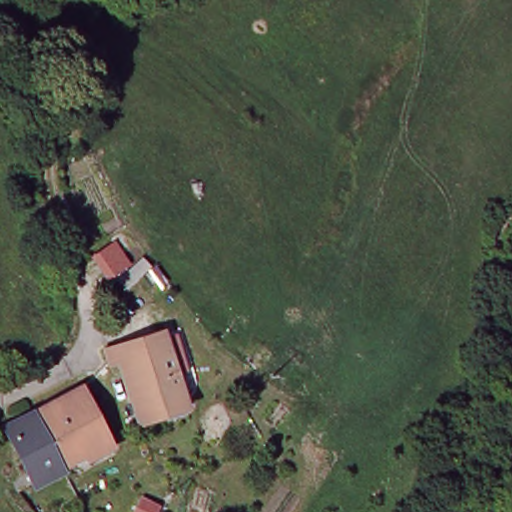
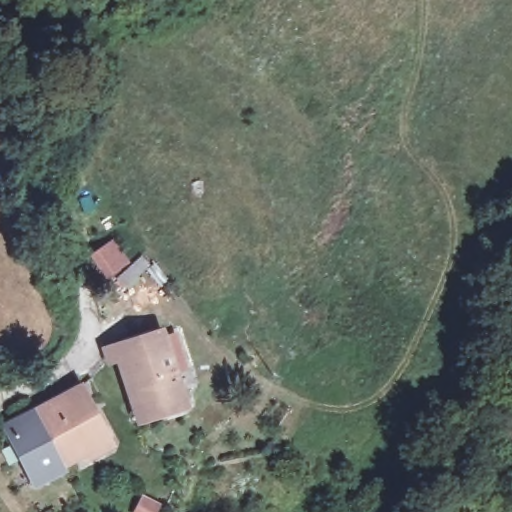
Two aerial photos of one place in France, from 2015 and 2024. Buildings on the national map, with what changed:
unchanged [(129,266),(142,256),(151,272),(115,291),(89,252),(111,239),(129,266)]
unchanged [(191,399),(173,406),(146,420),(138,401),(123,366),(110,371),(108,358),(161,334),(191,399)]
unchanged [(30,417),(79,393),(90,415),(44,442),(30,417)]
unchanged [(90,415),(106,449),(61,470),(44,442),(90,415)]
unchanged [(61,470),(31,484),(6,428),(30,417),(44,442),(61,470)]
unchanged [(149,507),(159,512),(146,512),(149,507)]

